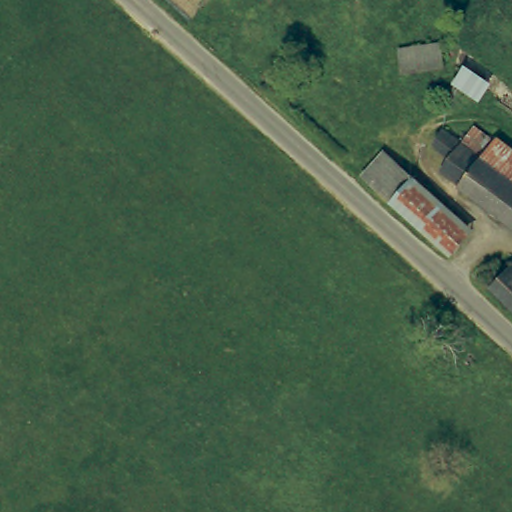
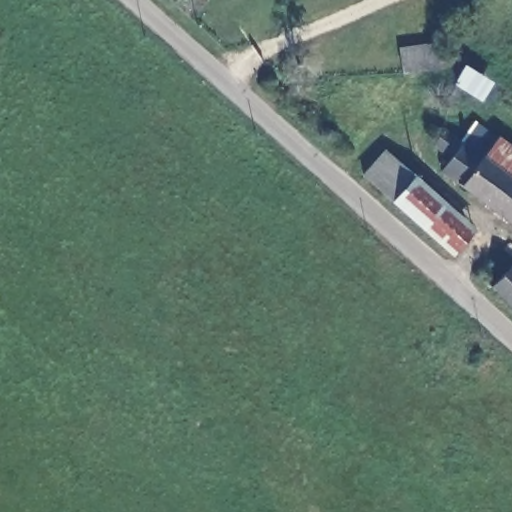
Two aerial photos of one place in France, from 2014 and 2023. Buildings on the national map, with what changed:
unchanged [(405,38),(445,33),(449,61),(409,65),(405,38)]
unchanged [(446,176),(444,174),(453,161),(437,148),(447,135),(456,140),(464,146),(483,126),(501,140),(512,148),(512,222),(446,176)]
unchanged [(367,170),(389,148),(474,227),(453,252),(387,187),(367,170)]
unchanged [(489,284),(508,264),(512,258),(512,304),(489,284)]

